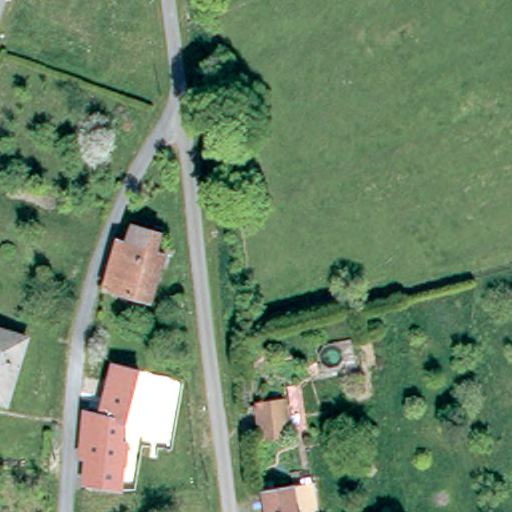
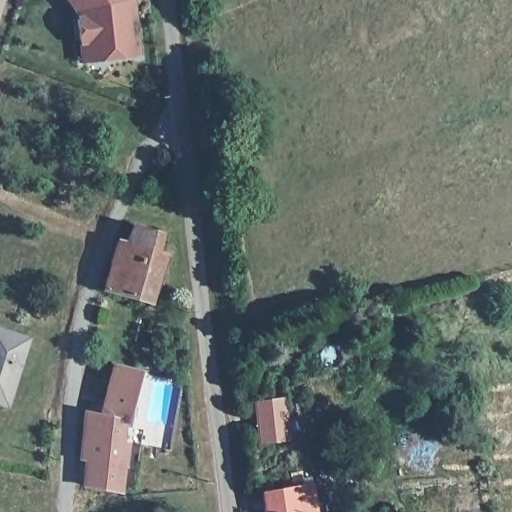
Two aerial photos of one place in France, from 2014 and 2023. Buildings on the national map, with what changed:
new [(141,58),(80,63),(76,15),(65,0),(135,0),(141,58)]
unchanged [(130,251),(137,233),(164,242),(157,260),(166,263),(152,310),(106,295),(122,248),(130,251)]
unchanged [(2,400),(0,399),(0,326),(26,335),(2,400)]
unchanged [(86,408),(102,413),(117,362),(142,370),(130,421),(125,420),(121,440),(128,441),(125,460),(84,454),(79,453),(86,408)]
unchanged [(287,436),(259,439),(254,401),(285,397),(287,436)]
unchanged [(314,487),(318,512),(266,512),(262,496),(314,487)]

